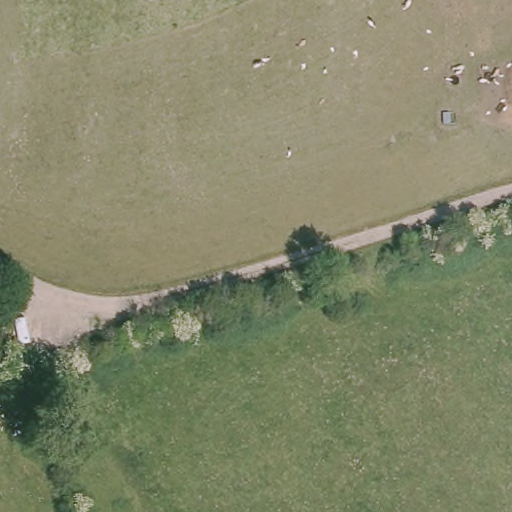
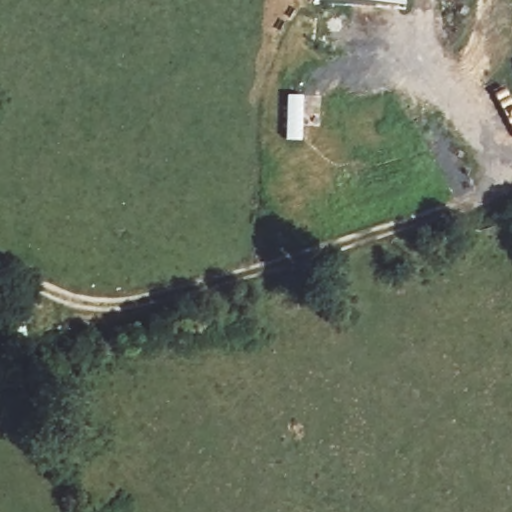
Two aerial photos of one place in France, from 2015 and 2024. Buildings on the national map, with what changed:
new [(313,1),(313,0),(406,0),(406,8),(313,1)]

